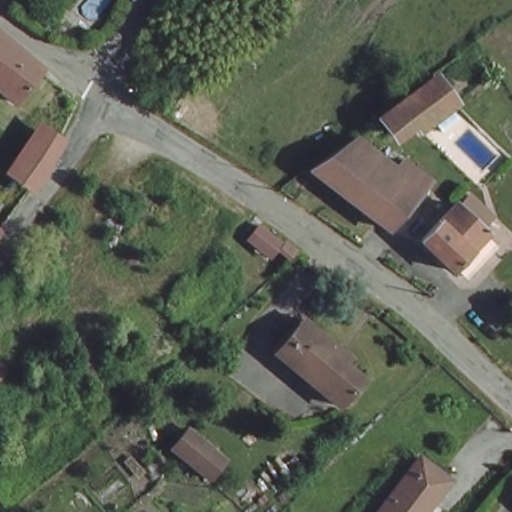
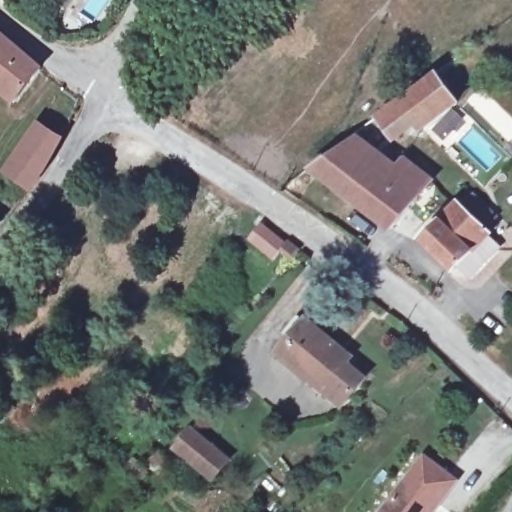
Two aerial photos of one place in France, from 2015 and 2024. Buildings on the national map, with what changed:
unchanged [(43,69),(18,100),(0,86),(0,38),(12,46),(43,69)]
unchanged [(432,78),(453,102),(421,129),(412,119),(391,137),(375,120),(432,78)]
unchanged [(53,139),(49,149),(24,184),(2,169),(34,126),(53,139)]
unchanged [(350,145),(390,174),(400,163),(425,182),(386,232),(309,177),(350,145)]
unchanged [(455,267),(422,238),(455,203),(487,233),(483,237),(458,264),(455,267)]
unchanged [(288,247),(275,265),(251,249),(266,230),(288,247)]
unchanged [(363,377),(342,407),(274,360),(300,323),(337,349),(333,354),(363,377)]
unchanged [(233,457),(211,485),(170,453),(192,425),(233,457)]
unchanged [(457,476),(431,512),(379,512),(423,452),(457,476)]

